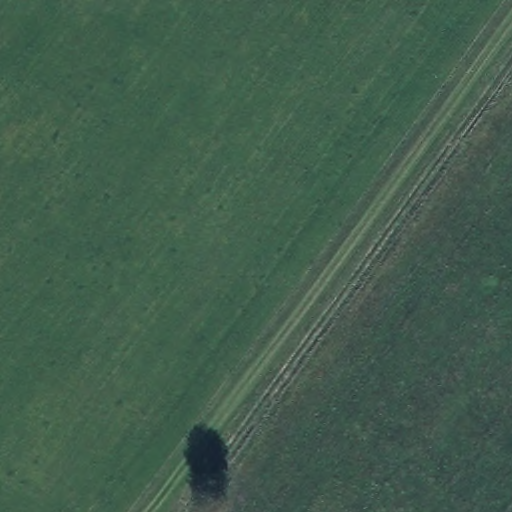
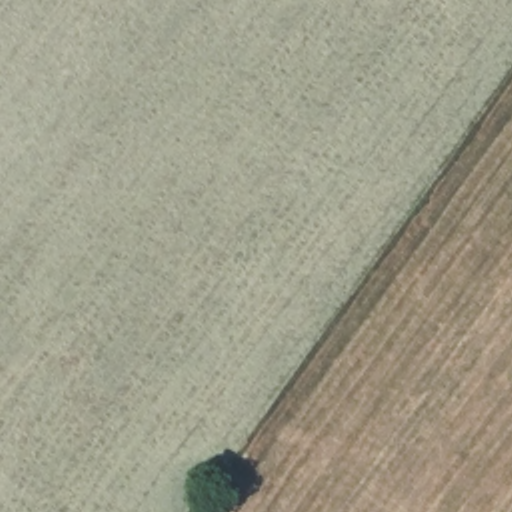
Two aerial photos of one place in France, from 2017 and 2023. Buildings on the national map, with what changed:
[]

